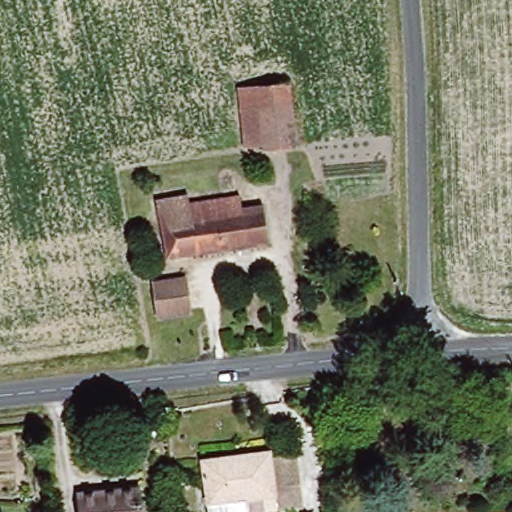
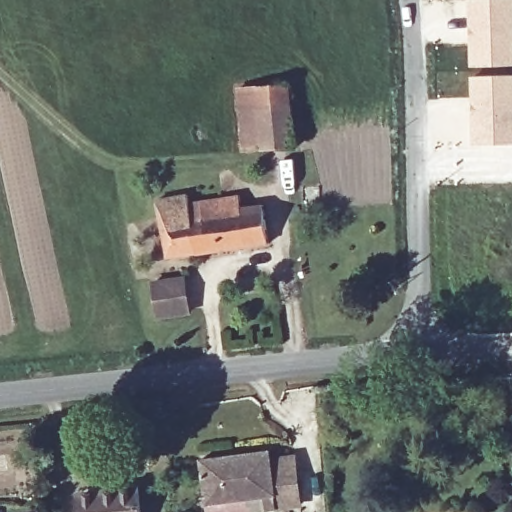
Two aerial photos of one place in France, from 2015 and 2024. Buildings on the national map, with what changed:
new [(511,0),(512,11),(512,64),(472,65),(469,0),(511,0)]
new [(471,77),(512,76),(512,143),(472,145),(471,77)]
unchanged [(262,147),(244,148),(238,89),(287,85),(292,146),(263,149),(262,147)]
unchanged [(187,195),(187,203),(240,195),(241,209),(262,205),(268,243),(166,259),(156,201),(187,195)]
unchanged [(183,279),(188,313),(159,318),(154,283),(183,279)]
unchanged [(257,511),(256,499),(242,501),(244,512),(187,512),(180,463),(249,453),(250,462),(273,459),(274,467),(281,509),(257,511)]
unchanged [(144,512),(85,512),(83,496),(82,491),(105,489),(142,485),(144,512)]

